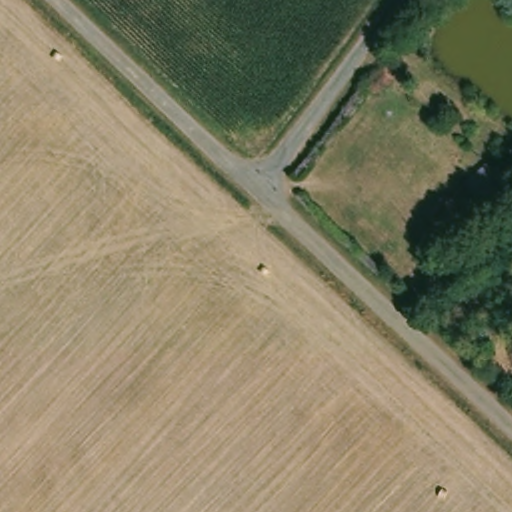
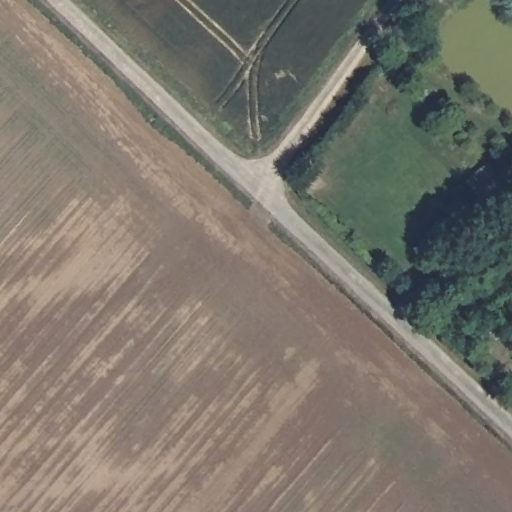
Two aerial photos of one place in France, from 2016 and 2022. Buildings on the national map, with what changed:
unchanged [(512,176),(512,191),(481,216),(463,194),(500,161),(512,176)]

